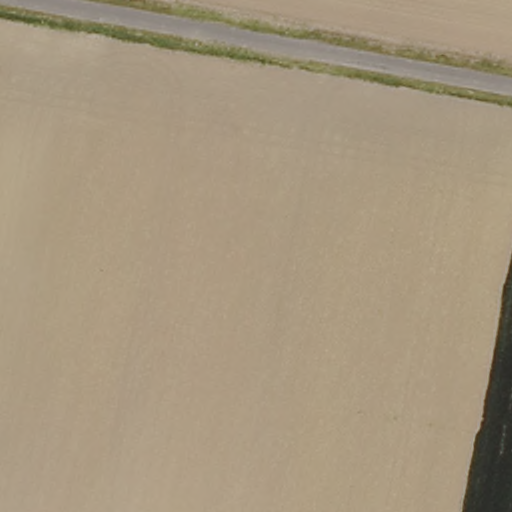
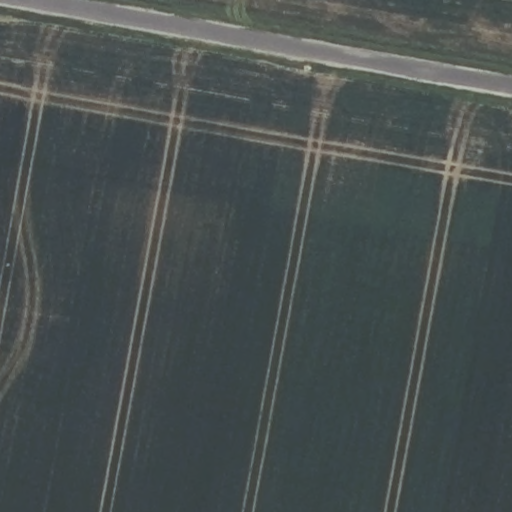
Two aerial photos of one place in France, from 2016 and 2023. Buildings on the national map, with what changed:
[]

